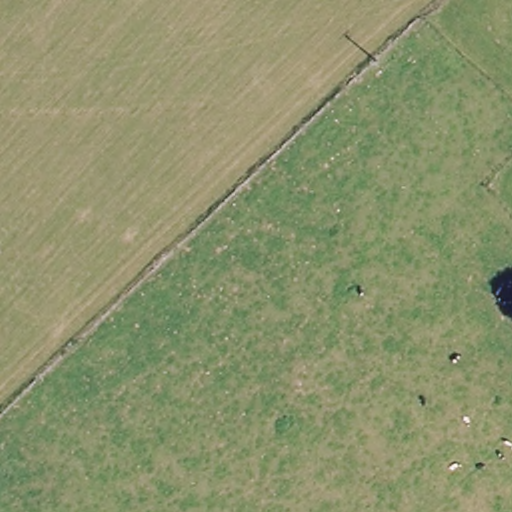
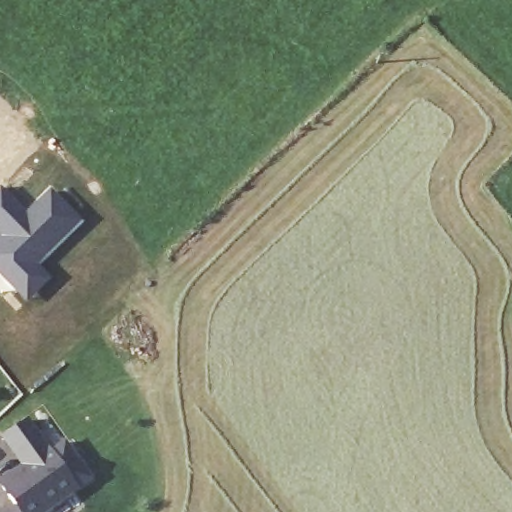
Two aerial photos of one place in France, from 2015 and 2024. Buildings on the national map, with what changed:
new [(26,209),(50,186),(85,220),(41,266),(52,278),(26,304),(0,277),(0,185),(1,183),(26,209)]
new [(37,435),(12,452),(1,436),(25,418),(37,435)]
new [(37,509),(34,512),(20,512),(0,484),(0,481),(46,447),(48,450),(62,440),(88,476),(39,512),(37,509)]

